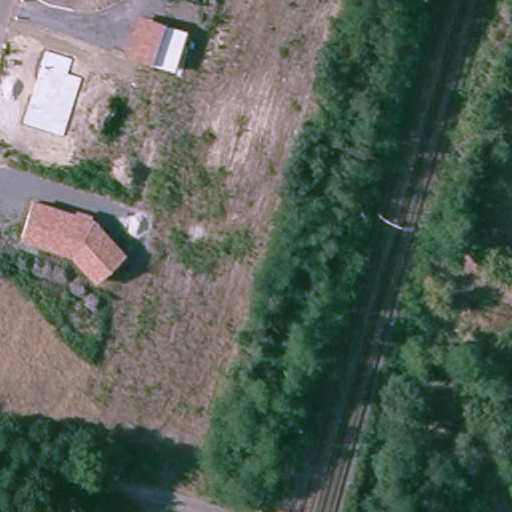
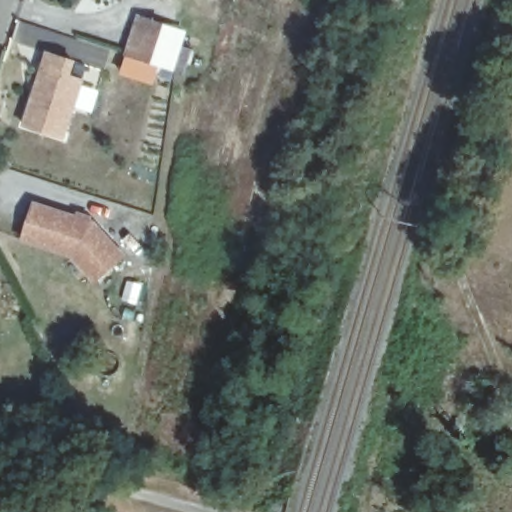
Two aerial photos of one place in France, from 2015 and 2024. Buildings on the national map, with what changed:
unchanged [(187,30),(174,71),(124,55),(138,14),(187,30)]
new [(21,124),(45,49),(76,58),(72,74),(85,78),(65,138),(21,124)]
unchanged [(21,241),(34,198),(75,212),(76,209),(91,216),(126,255),(94,283),(71,257),(21,241)]

